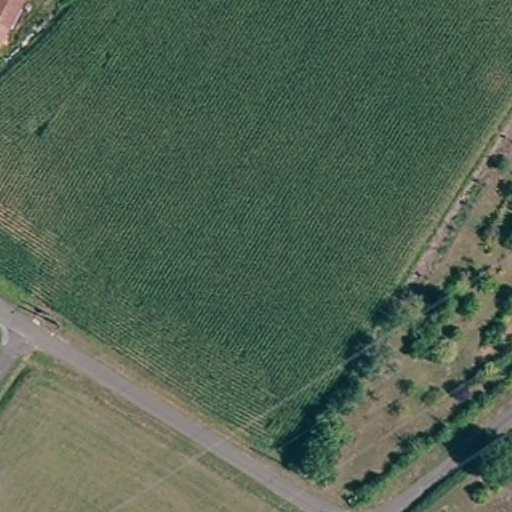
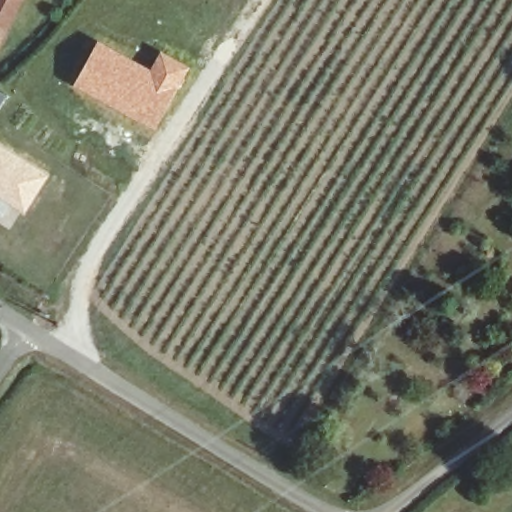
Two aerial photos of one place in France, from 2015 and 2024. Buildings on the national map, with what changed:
unchanged [(0,41),(0,0),(22,0),(7,27),(0,41)]
new [(97,40),(149,69),(160,50),(190,67),(155,130),(72,86),(97,40)]
new [(0,145),(48,176),(26,214),(0,198),(0,145)]

